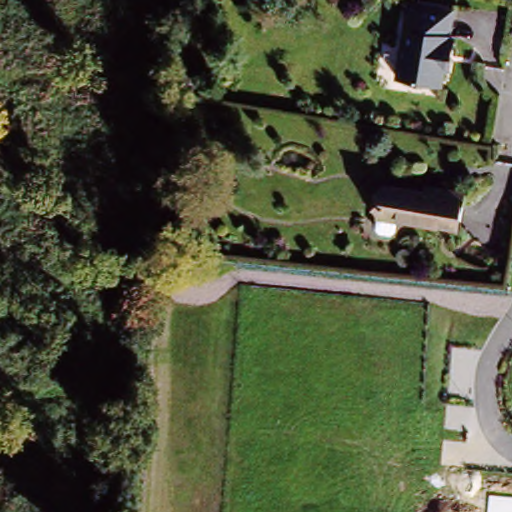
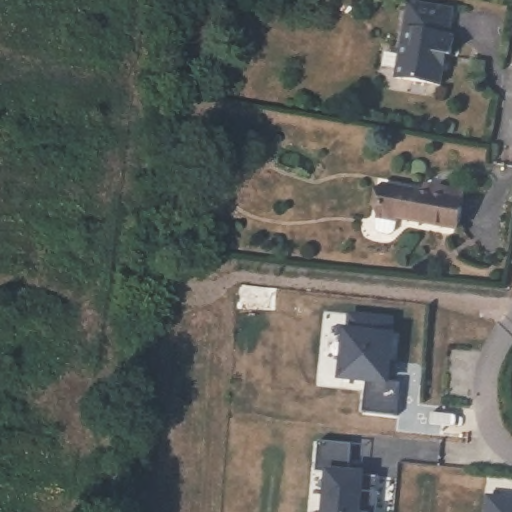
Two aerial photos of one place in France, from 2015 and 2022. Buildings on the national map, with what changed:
unchanged [(440,82),(395,75),(407,0),(411,0),(453,7),(448,32),(454,34),(451,54),(448,69),(443,68),(440,82)]
unchanged [(448,232),(368,220),(375,187),(417,195),(418,187),(431,189),(455,193),(448,232)]
new [(345,331),(348,331),(350,314),(385,317),(383,335),(387,335),(383,379),(397,380),(394,413),(362,410),(365,378),(340,375),(345,331)]
new [(328,470),(317,468),(320,437),(353,441),(350,470),(380,473),(377,502),(376,512),(324,512),(328,470)]
new [(512,512),(485,512),(486,495),(512,498),(512,512)]

